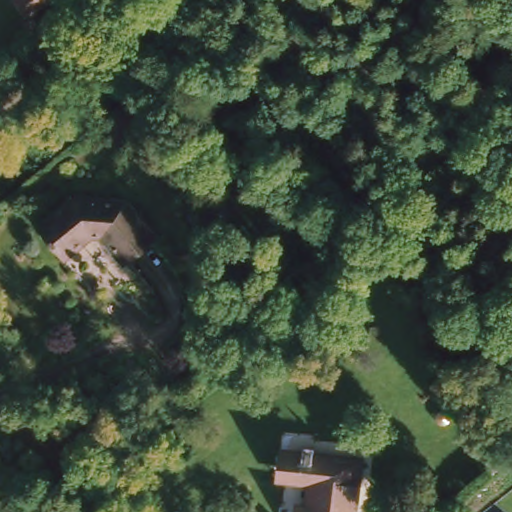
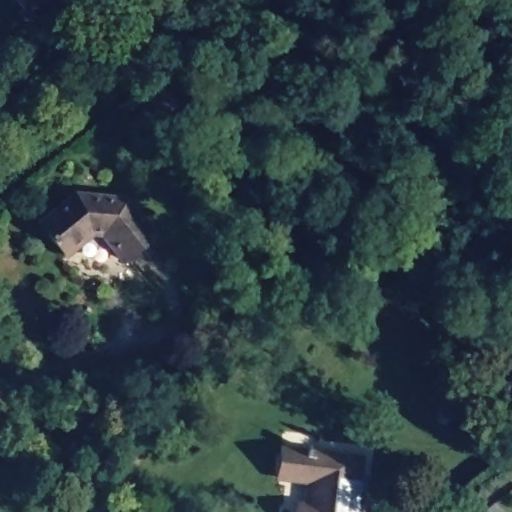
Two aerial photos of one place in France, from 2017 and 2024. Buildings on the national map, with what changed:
unchanged [(34,17),(17,0),(51,0),(34,17)]
unchanged [(134,243),(122,252),(101,225),(92,225),(63,246),(37,215),(75,184),(126,190),(155,227),(149,232),(134,243)]
unchanged [(512,418),(512,443),(499,430),(512,418)]
unchanged [(294,512),(295,501),(308,502),(311,475),(284,473),(277,472),(279,445),(287,446),(356,454),(349,512),(294,512)]

